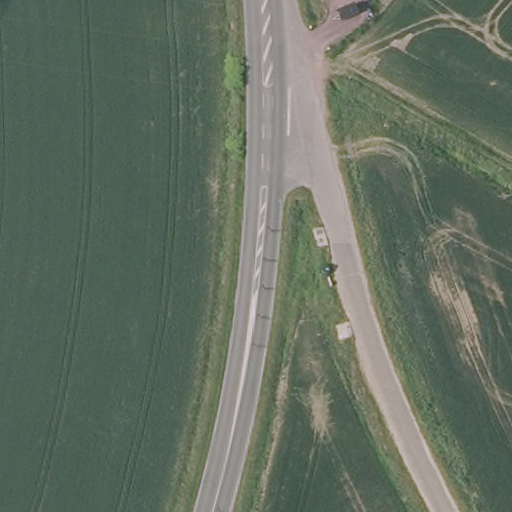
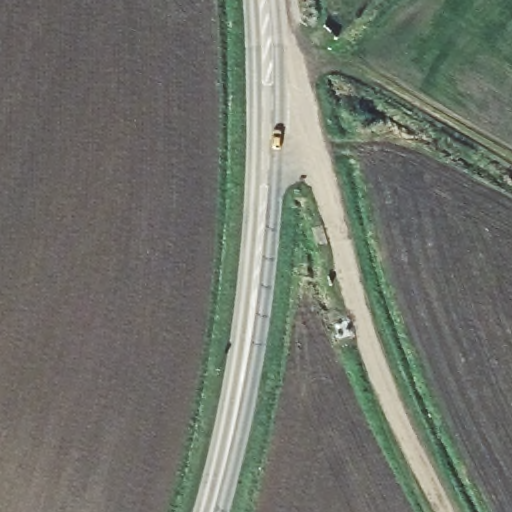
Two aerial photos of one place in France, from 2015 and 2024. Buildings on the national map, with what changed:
[]

